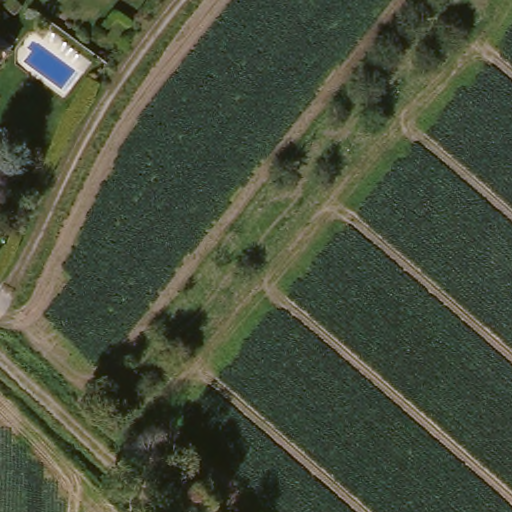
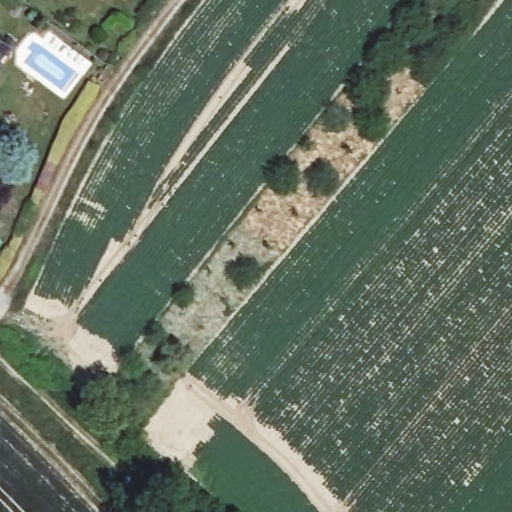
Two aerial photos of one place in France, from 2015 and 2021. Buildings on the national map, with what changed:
unchanged [(3,51),(0,55),(0,49),(3,51)]

